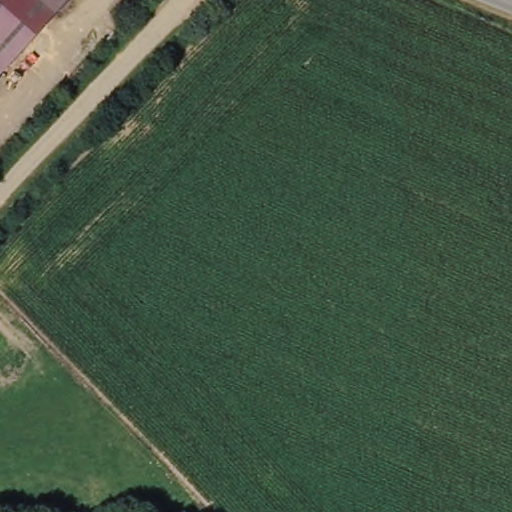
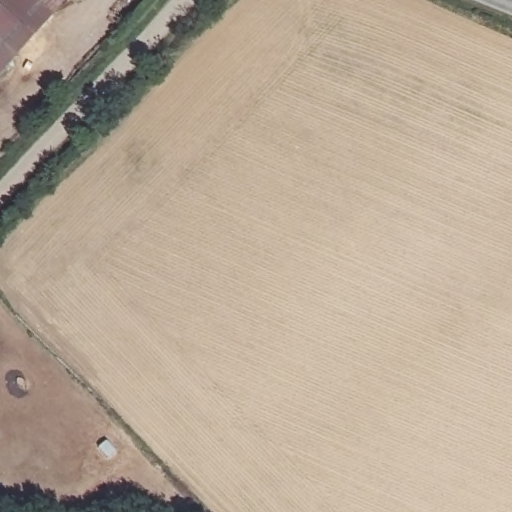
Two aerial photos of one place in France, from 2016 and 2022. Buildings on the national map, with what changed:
unchanged [(10,0),(62,0),(39,26),(10,0)]
unchanged [(2,65),(0,68),(0,33),(17,48),(2,65)]

